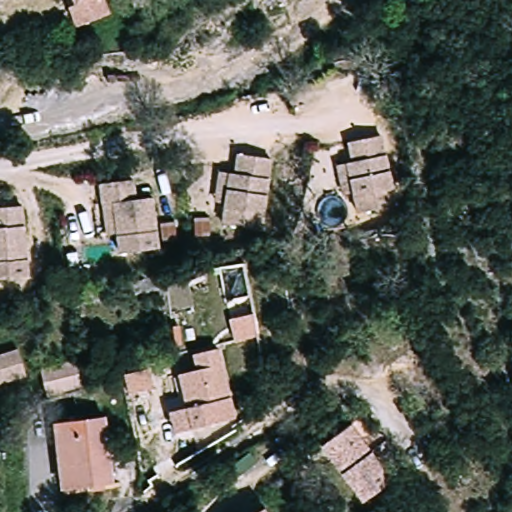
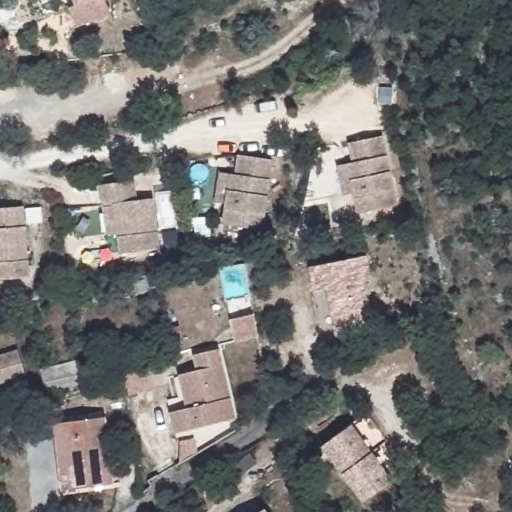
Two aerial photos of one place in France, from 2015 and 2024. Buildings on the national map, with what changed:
unchanged [(76,1),(76,0),(103,0),(107,13),(75,23),(68,4),(76,1)]
unchanged [(357,161),(354,141),(386,135),(399,205),(361,213),(355,191),(345,194),(340,164),(352,162),(357,161)]
unchanged [(243,153),(274,158),(262,229),(225,223),(228,202),(218,201),(222,171),(233,173),(240,173),(243,153)]
unchanged [(105,207),(103,186),(135,181),(137,203),(154,201),(160,250),(122,255),(120,235),(109,236),(105,207)]
unchanged [(28,278),(0,279),(0,208),(24,207),(28,278)]
new [(338,345),(326,290),(315,294),(308,269),(367,257),(372,281),(363,282),(375,335),(338,345)]
unchanged [(27,371),(0,381),(0,352),(17,345),(27,371)]
unchanged [(42,363),(85,353),(92,377),(47,392),(42,363)]
unchanged [(150,359),(154,382),(132,386),(128,366),(150,359)]
unchanged [(190,378),(230,367),(243,420),(202,431),(185,435),(180,412),(197,407),(190,378)]
unchanged [(111,417),(118,483),(80,488),(67,489),(59,423),(73,421),(111,417)]
unchanged [(349,424),(390,481),(362,501),(322,446),(349,424)]
unchanged [(274,512),(262,512),(271,507),(274,512)]

